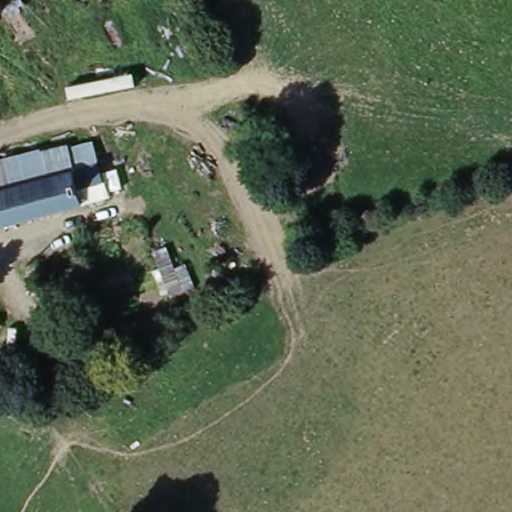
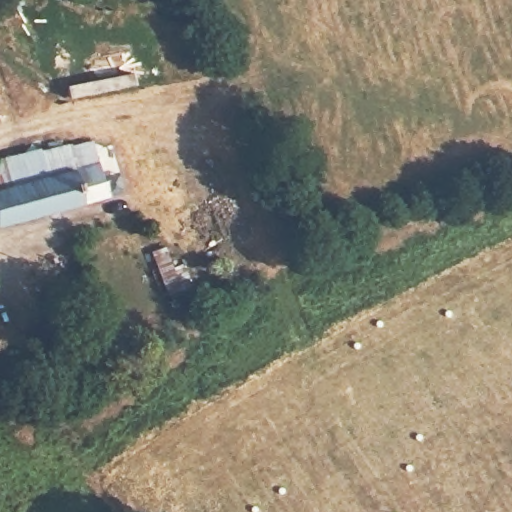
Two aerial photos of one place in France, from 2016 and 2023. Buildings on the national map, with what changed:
unchanged [(71,172),(0,192),(0,164),(64,147),(71,172)]
unchanged [(0,229),(0,192),(71,172),(98,165),(107,199),(0,229)]

